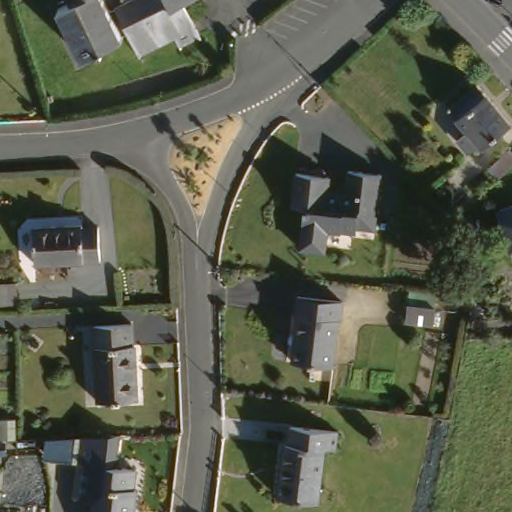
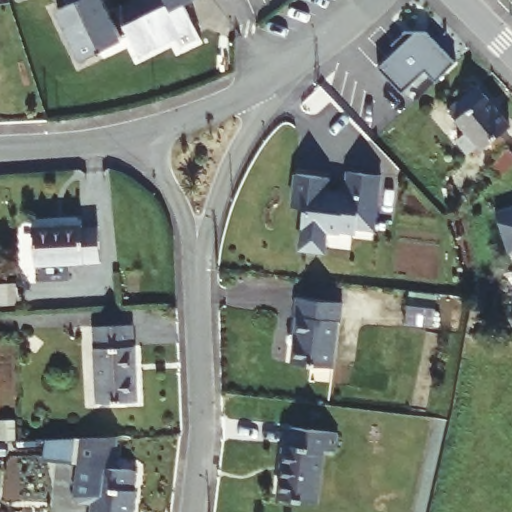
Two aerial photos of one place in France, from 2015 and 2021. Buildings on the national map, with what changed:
unchanged [(133,0),(195,0),(184,5),(200,38),(179,49),(175,39),(138,56),(127,34),(121,37),(122,40),(81,60),(57,10),(71,4),(69,0),(103,0),(109,12),(133,0)]
new [(390,47),(403,35),(415,34),(426,33),(456,64),(435,83),(425,73),(402,95),(378,69),(395,53),(390,47)]
unchanged [(480,151),(477,147),(467,155),(457,142),(466,135),(446,110),(475,86),(510,126),(480,151)]
unchanged [(494,184),(490,180),(475,194),(465,184),(480,170),(484,173),(508,150),(512,155),(512,167),(494,184)]
unchanged [(380,176),(376,210),(372,210),(370,221),(375,221),(373,231),(355,230),(355,234),(351,233),(340,231),(340,234),(326,232),(324,247),(323,254),(298,250),(303,210),(297,209),(298,197),(292,196),(295,175),(328,179),(326,193),(346,195),(347,189),(345,189),(346,172),(380,176)]
unchanged [(34,265),(32,229),(82,227),(82,230),(97,229),(100,262),(34,265)]
unchanged [(17,304),(0,305),(0,286),(15,285),(17,304)]
unchanged [(297,317),(295,317),(297,298),(342,304),(340,323),(337,322),(331,369),(310,366),(292,364),(297,317)]
unchanged [(435,310),(432,327),(405,324),(407,306),(435,310)]
unchanged [(97,400),(94,323),(132,321),(132,342),(134,342),(137,397),(97,400)]
unchanged [(337,432),(335,451),(323,450),(317,503),(278,499),(284,445),(287,445),(288,427),(337,432)]
new [(44,440),(74,438),(72,462),(42,459),(44,440)]
unchanged [(6,456),(0,456),(0,444),(5,444),(6,456)]
unchanged [(77,502),(73,498),(77,465),(132,471),(130,491),(133,491),(131,512),(91,512),(92,505),(77,502)]

